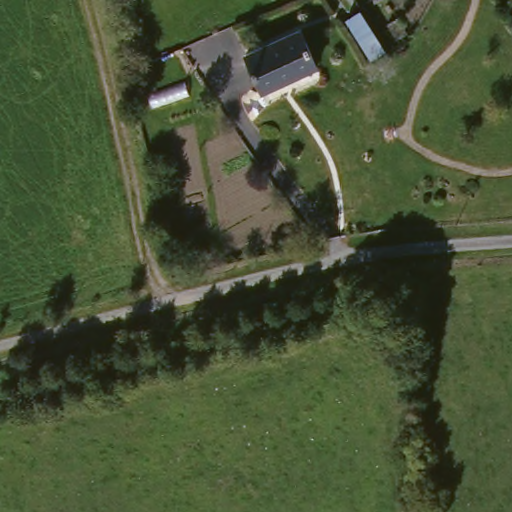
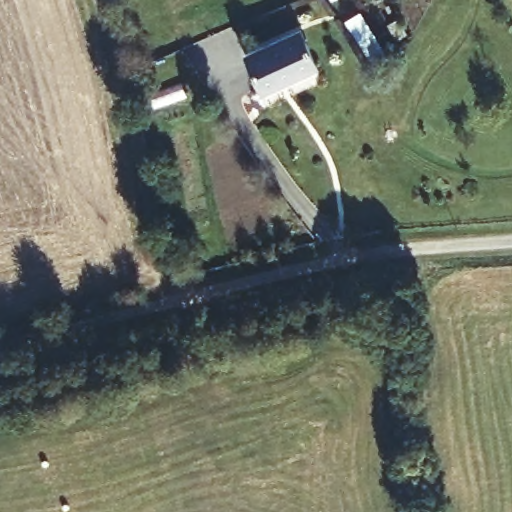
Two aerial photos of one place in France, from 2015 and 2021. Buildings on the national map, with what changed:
unchanged [(245,54),(300,28),(316,66),(271,86),(262,90),(245,54)]

